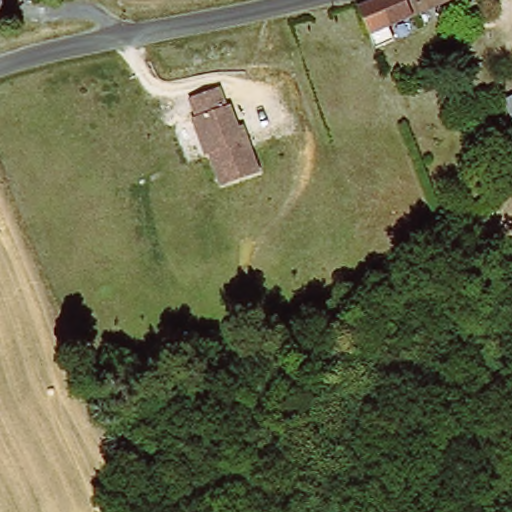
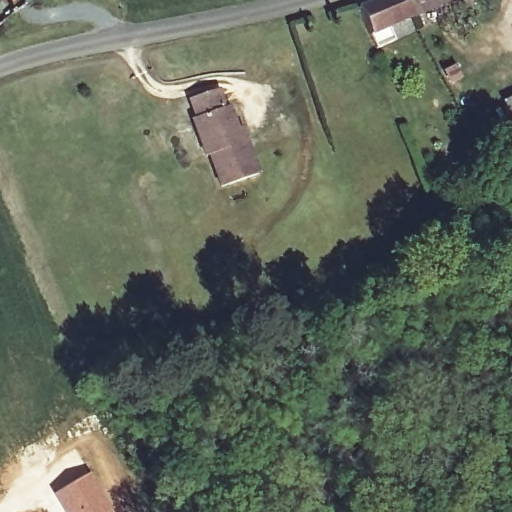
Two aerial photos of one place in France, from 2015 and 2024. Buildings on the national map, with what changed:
unchanged [(367,35),(354,6),(368,0),(404,0),(412,14),(413,17),(387,27),(392,41),(374,48),(367,35)]
unchanged [(404,0),(446,0),(412,14),(404,0)]
unchanged [(260,173),(221,186),(210,153),(207,154),(193,117),(197,117),(191,97),(220,87),(227,106),(231,105),(243,139),(247,137),(260,173)]
unchanged [(512,97),(512,127),(499,103),(512,97)]
new [(92,472),(117,512),(64,512),(54,493),(92,472)]

